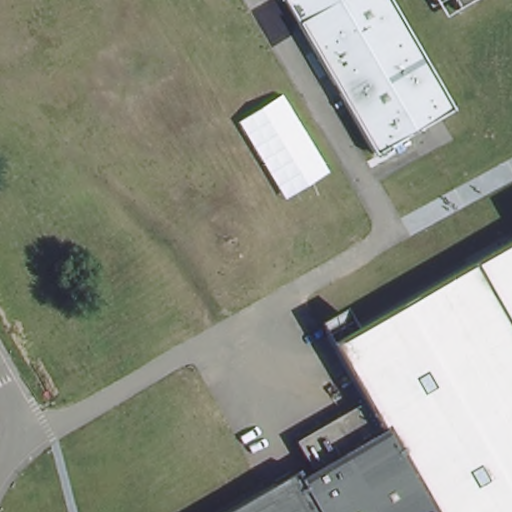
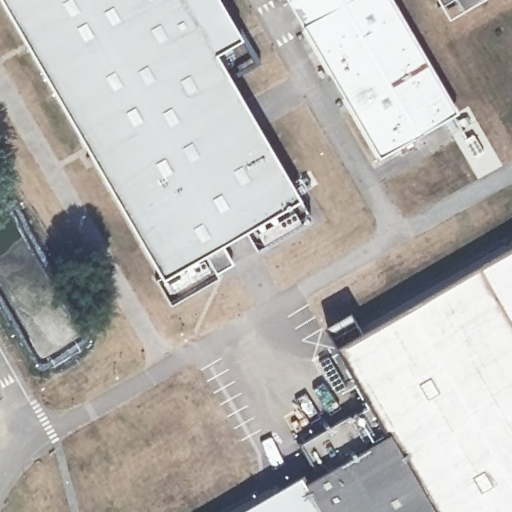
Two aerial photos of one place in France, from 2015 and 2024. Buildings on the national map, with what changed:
new [(212,49),(295,192),(308,215),(255,245),(244,226),(217,241),(231,260),(213,270),(216,275),(169,301),(154,277),(158,272),(1,0),(218,0),(238,34),(212,49)]
unchanged [(375,156),(287,0),(388,0),(453,113),(375,156)]
unchanged [(438,0),(452,0),(441,6),(438,0)]
unchanged [(452,0),(483,0),(460,12),(452,0)]
unchanged [(297,469),(302,475),(310,470),(293,442),(365,398),(320,321),(346,306),(358,324),(512,234),(512,512),(223,512),(297,469)]

